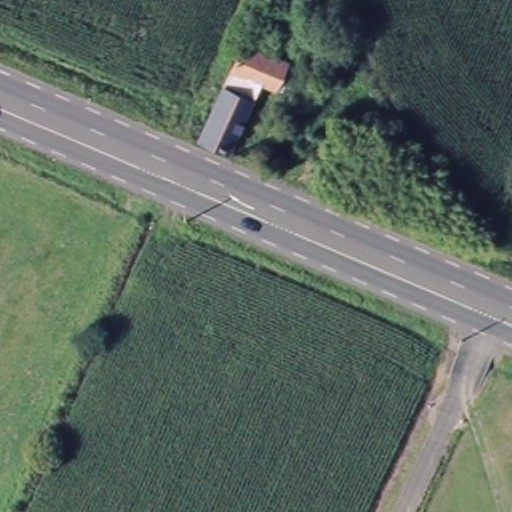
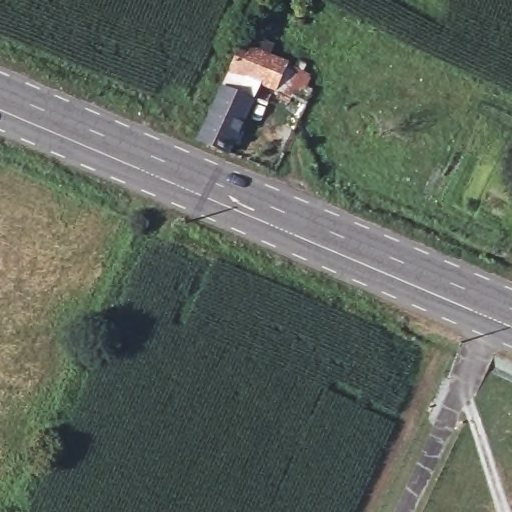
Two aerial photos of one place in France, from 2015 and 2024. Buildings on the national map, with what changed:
unchanged [(280,104),(281,98),(262,91),(229,162),(201,149),(244,53),(249,44),(283,58),(279,68),(305,78),(291,103),(290,109),(280,104)]

